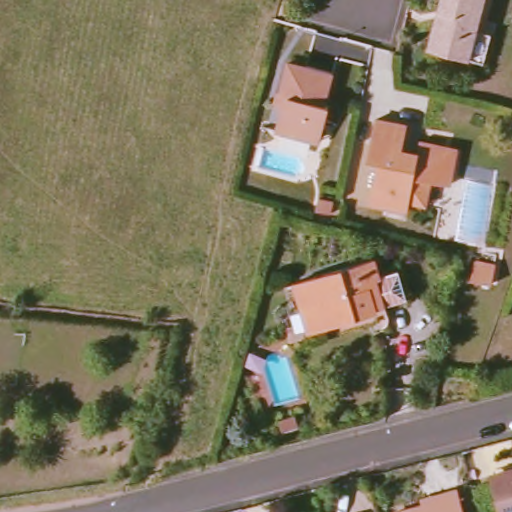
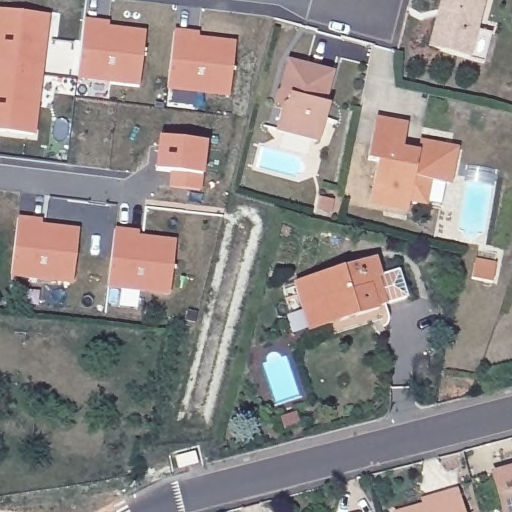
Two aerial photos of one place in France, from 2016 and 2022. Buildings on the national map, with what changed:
unchanged [(471,62),(436,53),(427,51),(439,12),(442,0),(488,0),(479,34),(494,37),(488,66),(471,62)]
new [(41,76),(0,71),(0,11),(48,16),(41,76)]
new [(99,22),(99,27),(146,33),(139,86),(78,78),(84,21),(99,22)]
new [(174,31),(189,34),(189,38),(236,44),(229,96),(168,89),(174,31)]
unchanged [(316,138),(279,129),(285,103),(289,104),(291,97),(281,94),(288,62),(333,74),(326,102),(334,104),(329,120),(324,140),(316,138)]
new [(34,136),(0,132),(0,71),(41,76),(34,136)]
unchanged [(436,181),(434,186),(431,202),(413,197),(410,208),(375,198),(384,161),(374,159),(381,117),(412,124),(404,154),(421,158),(424,145),(431,140),(451,145),(462,147),(458,166),(453,185),(436,181)]
new [(206,143),(200,191),(170,187),(172,172),(156,171),(160,137),(206,143)]
new [(33,220),(33,225),(79,231),(73,283),(11,276),(18,219),(33,220)]
new [(130,232),(129,237),(176,242),(170,295),(108,287),(115,230),(130,232)]
unchanged [(312,340),(309,330),(311,328),(298,282),(379,258),(384,275),(402,269),(409,297),(387,303),(391,317),(386,318),(312,340)]
unchanged [(495,270),(491,287),(474,282),(478,265),(495,270)]
unchanged [(494,475),(512,471),(512,512),(504,512),(494,475)]
unchanged [(429,509),(428,502),(463,494),(467,512),(416,512),(429,509)]

